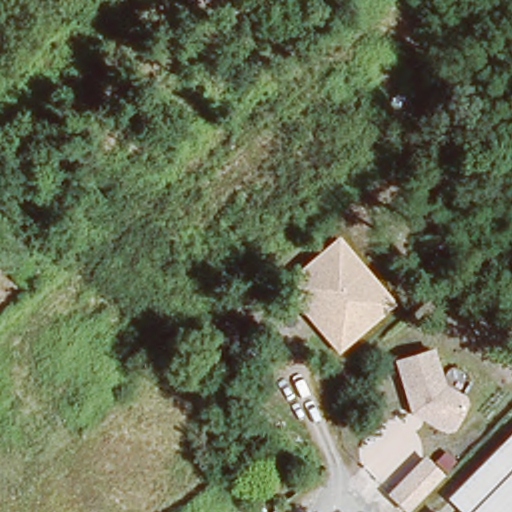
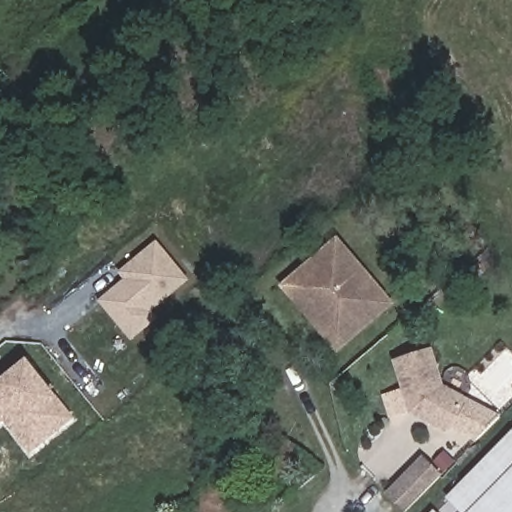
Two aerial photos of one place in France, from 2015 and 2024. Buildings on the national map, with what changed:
unchanged [(396,303),(338,355),(281,289),(339,238),(396,303)]
new [(125,280),(120,273),(155,243),(185,280),(148,311),(154,318),(131,339),(100,302),(120,285),(125,280)]
unchanged [(472,409),(457,433),(446,434),(427,423),(412,427),(392,356),(436,343),(448,386),(467,396),(472,409)]
new [(3,421),(0,424),(0,387),(4,383),(16,373),(25,365),(70,419),(42,442),(29,452),(3,421)]
unchanged [(512,433),(512,512),(459,512),(445,497),(512,433)]
unchanged [(409,512),(406,512),(387,493),(424,455),(446,475),(409,512)]
unchanged [(439,512),(432,512),(435,508),(439,512)]

